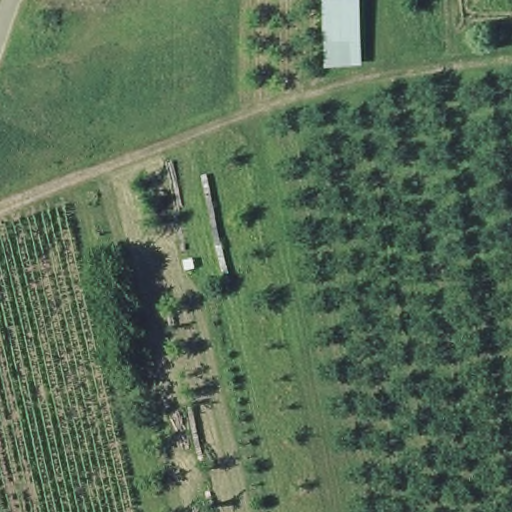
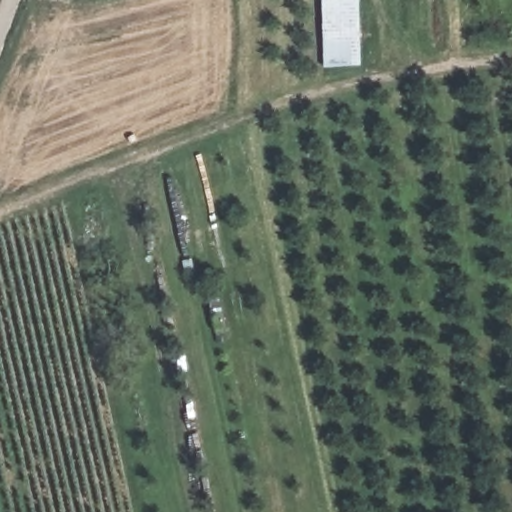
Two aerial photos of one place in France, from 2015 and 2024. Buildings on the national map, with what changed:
unchanged [(332,59),(329,0),(369,0),(372,57),(332,59)]

